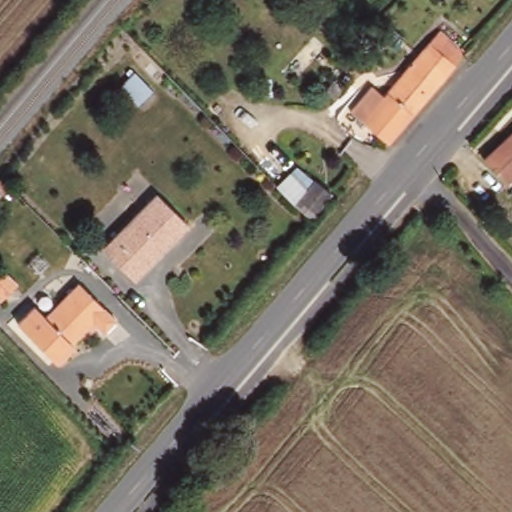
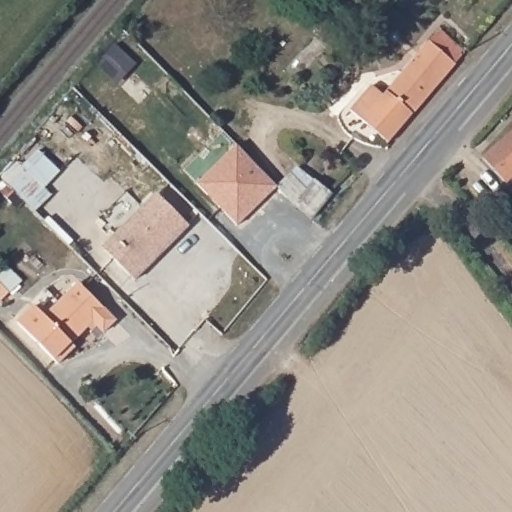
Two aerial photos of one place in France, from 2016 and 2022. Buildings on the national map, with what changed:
unchanged [(463,51),(453,63),(455,64),(388,143),(362,121),(378,101),(370,94),(375,89),(383,95),(428,42),(439,30),(463,51)]
unchanged [(152,90),(139,104),(120,86),(135,72),(152,90)]
unchanged [(342,89),(335,97),(325,89),(333,80),(342,89)]
unchanged [(505,184),(482,159),(512,132),(512,179),(505,184)]
new [(276,185),(237,224),(196,186),(236,145),(276,185)]
unchanged [(310,217),(294,204),(313,180),(330,193),(310,217)]
unchanged [(188,226),(135,279),(102,247),(155,195),(188,226)]
unchanged [(110,310),(120,320),(107,332),(97,321),(76,343),(79,346),(62,363),(21,322),(39,305),(50,316),(83,283),(110,310)]
unchanged [(0,300),(0,289),(2,286),(9,292),(0,300)]

